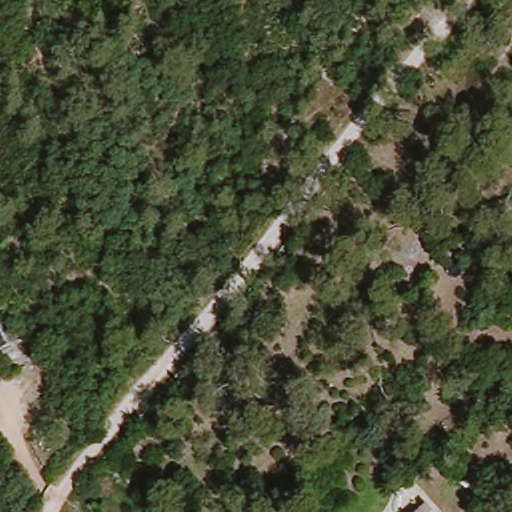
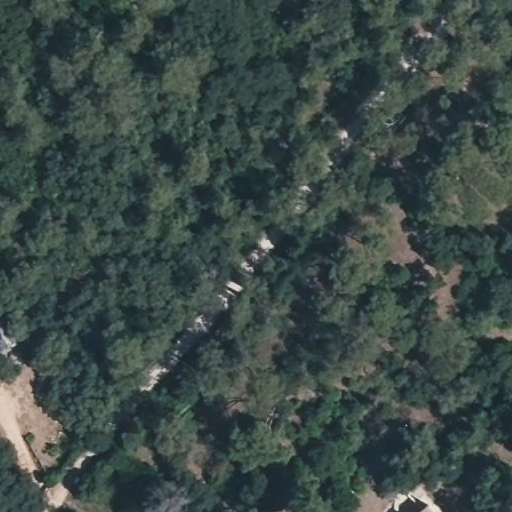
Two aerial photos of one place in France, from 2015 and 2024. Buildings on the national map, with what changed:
unchanged [(447,512),(420,512),(435,499),(447,512)]

